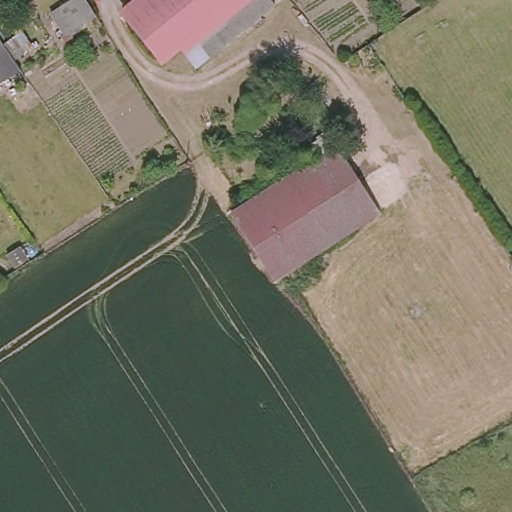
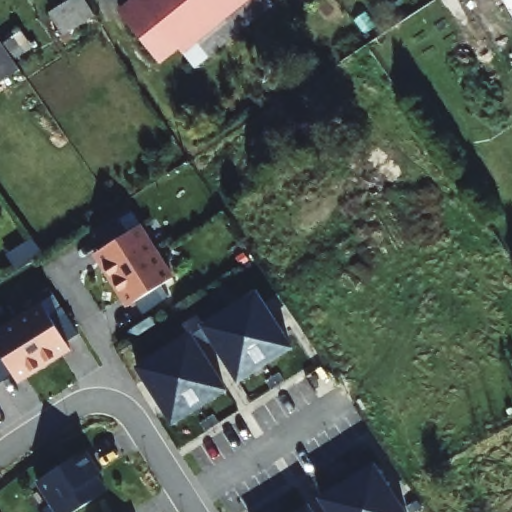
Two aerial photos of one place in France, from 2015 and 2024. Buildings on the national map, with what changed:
unchanged [(65,30),(50,8),(62,0),(89,0),(94,9),(65,30)]
unchanged [(192,62),(175,42),(154,58),(117,12),(131,0),(267,0),(269,2),(192,62)]
new [(512,0),(512,16),(503,0),(512,0)]
unchanged [(20,65),(0,80),(0,35),(20,65)]
unchanged [(380,209),(274,277),(229,210),(313,154),(305,143),(328,128),(380,209)]
new [(96,255),(140,226),(172,277),(127,306),(96,255)]
new [(294,347),(239,383),(212,345),(204,349),(228,389),(172,422),(136,368),(191,332),(187,326),(198,318),(202,326),(258,290),(294,347)]
new [(0,353),(0,333),(44,306),(71,348),(17,382),(0,353)]
new [(106,493),(75,512),(59,512),(40,481),(84,455),(106,493)]
new [(407,512),(328,512),(320,498),(375,462),(407,512)]
new [(311,504),(316,512),(298,512),(311,504)]

